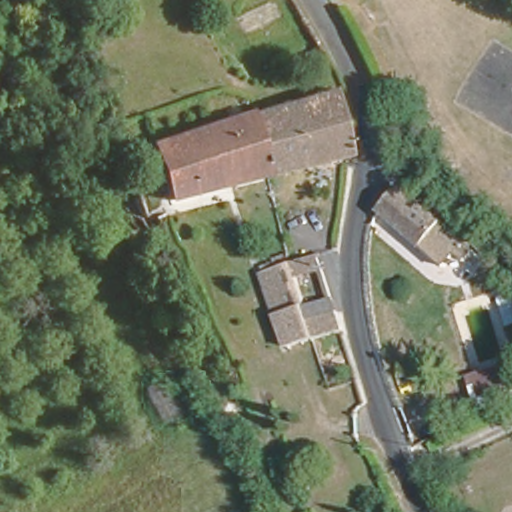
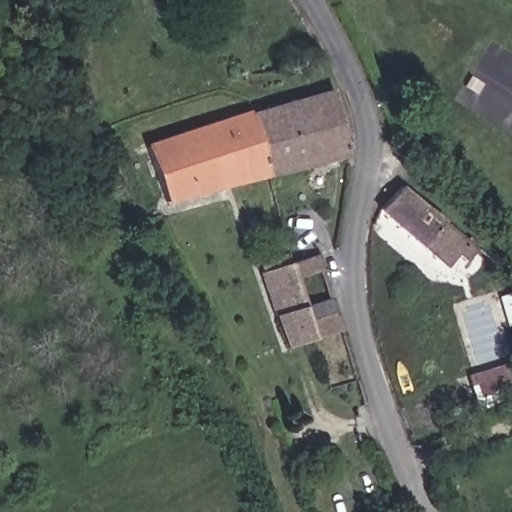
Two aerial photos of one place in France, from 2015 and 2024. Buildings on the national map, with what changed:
unchanged [(157,202),(143,133),(329,86),(344,154),(157,202)]
unchanged [(400,187),(466,245),(455,259),(447,252),(439,263),(380,210),(400,187)]
unchanged [(311,334),(288,343),(272,287),(266,269),(288,262),(310,254),(316,273),(294,279),(304,311),(326,304),(334,327),(311,334)]

